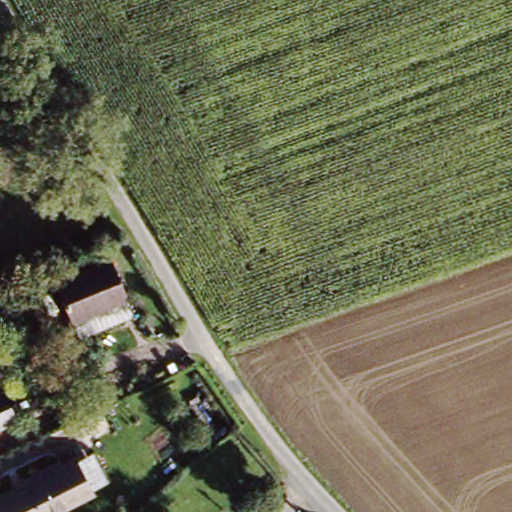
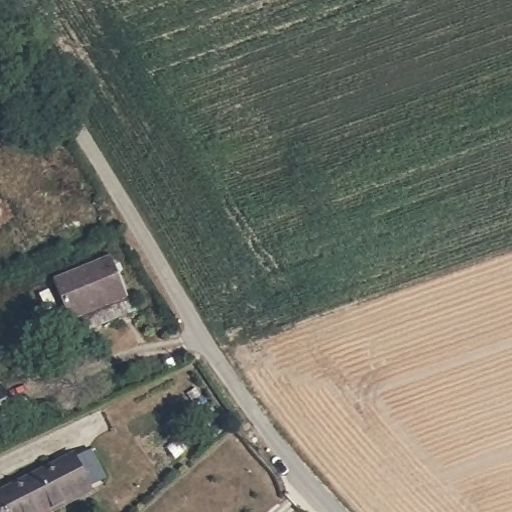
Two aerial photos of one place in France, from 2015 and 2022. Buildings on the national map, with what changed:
unchanged [(105,307),(72,323),(52,283),(107,258),(123,289),(127,297),(105,307)]
unchanged [(0,426),(0,398),(11,421),(0,426)]
unchanged [(52,512),(11,512),(2,494),(78,456),(96,490),(52,512)]

